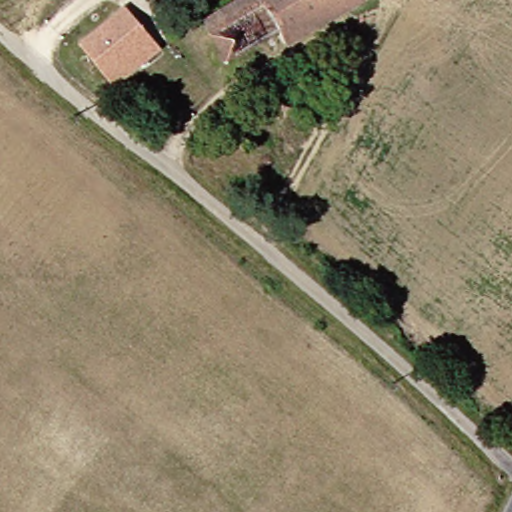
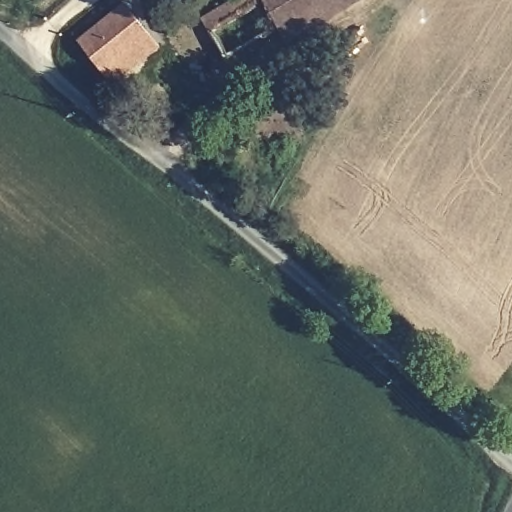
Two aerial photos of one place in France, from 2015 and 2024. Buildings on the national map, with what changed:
unchanged [(225,57),(201,20),(233,0),(259,0),(276,26),(225,57)]
unchanged [(284,41),(276,26),(259,0),(351,0),(284,41)]
unchanged [(117,74),(105,85),(69,45),(112,7),(141,39),(148,47),(117,74)]

